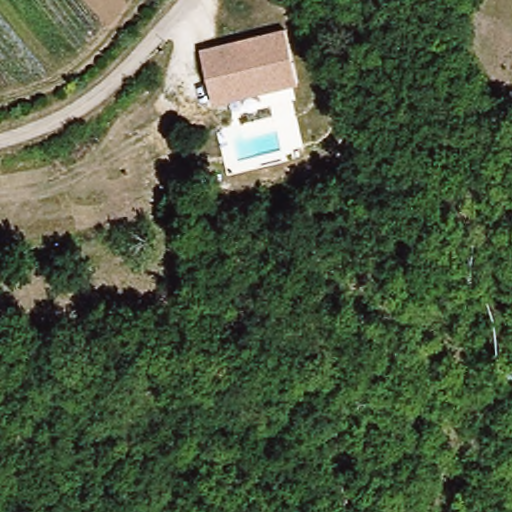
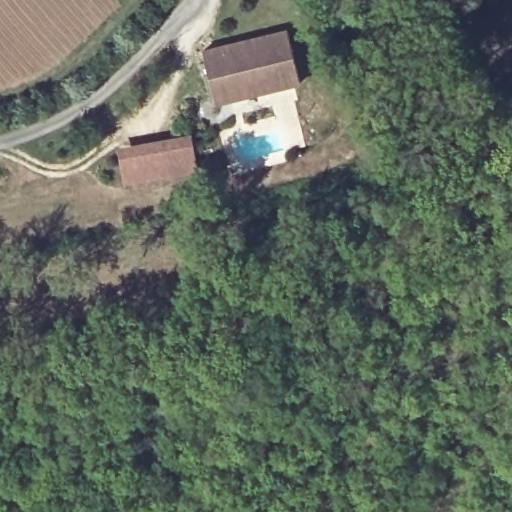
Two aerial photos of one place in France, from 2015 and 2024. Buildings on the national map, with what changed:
unchanged [(303,77),(218,100),(205,49),(290,27),(303,77)]
new [(117,145),(193,131),(200,171),(124,184),(117,145)]

